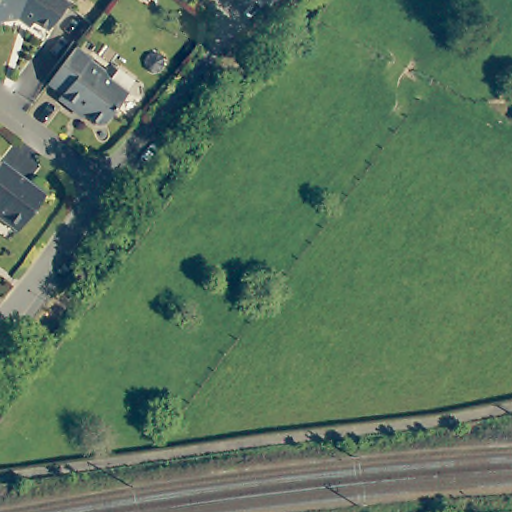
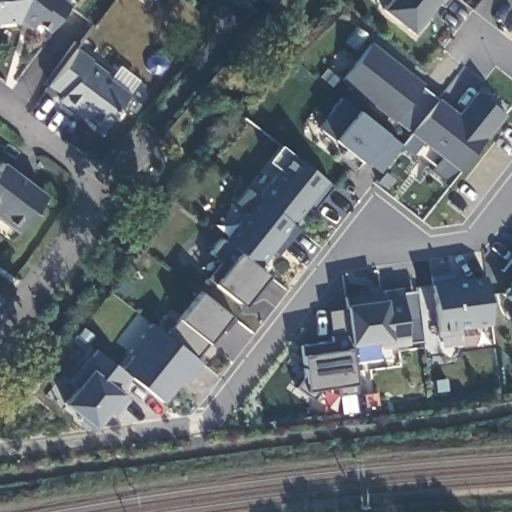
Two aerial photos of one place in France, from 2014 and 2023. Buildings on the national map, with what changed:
unchanged [(39,15),(36,18),(26,10),(24,13),(0,16),(0,0),(72,0),(52,24),(39,15)]
unchanged [(235,0),(255,0),(247,10),(235,0)]
unchanged [(267,0),(281,0),(275,6),(267,0)]
new [(381,8),(387,0),(436,0),(411,33),(381,8)]
new [(512,0),(512,4),(507,0),(512,0)]
new [(461,170),(341,81),(370,42),(422,82),(420,85),(458,114),(476,90),(506,114),(461,170)]
unchanged [(92,55),(91,57),(106,69),(109,76),(128,91),(106,120),(99,121),(77,105),(75,108),(60,96),(63,91),(51,82),(75,49),(78,45),(92,55)]
new [(378,174),(364,162),(333,138),(316,126),(339,97),(357,109),(387,135),(401,145),(378,174)]
new [(311,210),(307,205),(293,222),(299,227),(276,255),(273,252),(259,267),(268,274),(242,307),(213,283),(203,276),(217,261),(206,251),(218,236),(222,239),(243,212),(229,200),(242,185),(256,196),(276,170),(267,162),(278,145),(331,185),(311,210)]
unchanged [(46,191),(17,229),(0,216),(0,214),(2,211),(0,210),(0,161),(2,158),(46,191)]
new [(512,256),(512,265),(507,261),(512,256)]
new [(493,323),(461,328),(463,335),(438,340),(430,277),(451,275),(452,280),(484,275),(493,323)]
new [(512,281),(512,302),(502,295),(512,281)]
new [(381,350),(379,343),(352,346),(357,382),(359,392),(340,395),(338,385),(321,388),(314,398),(297,386),(305,376),(303,355),(301,345),(332,341),(327,310),(349,308),(348,303),(346,294),(400,287),(400,292),(414,290),(423,340),(381,350)]
new [(209,341),(198,355),(203,360),(185,385),(181,382),(164,404),(131,377),(120,391),(128,397),(113,417),(107,410),(95,425),(64,401),(75,386),(67,380),(93,348),(120,367),(131,352),(127,350),(148,323),(165,333),(176,317),(197,290),(228,315),(209,341)]

